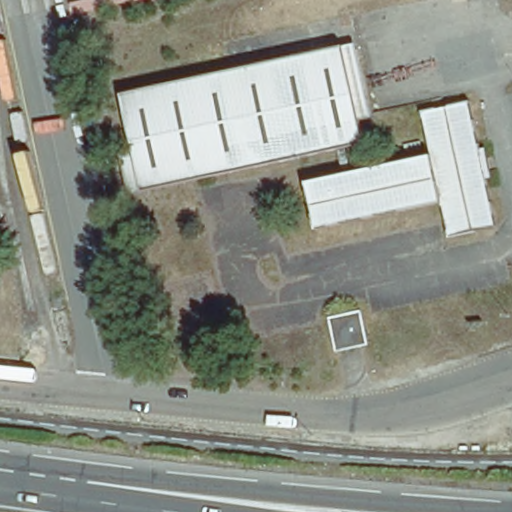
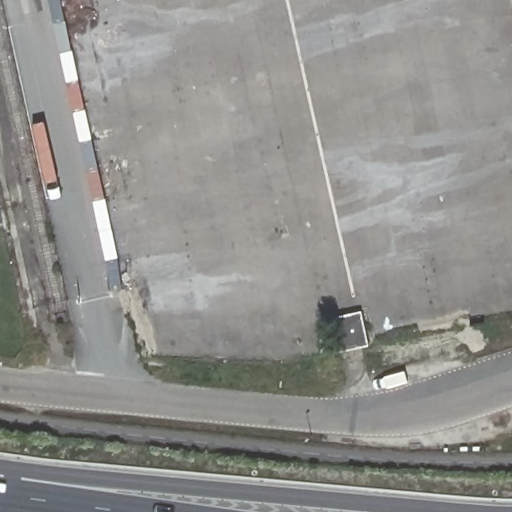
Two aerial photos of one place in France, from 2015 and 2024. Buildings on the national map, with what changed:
demolished [(139,156),(125,101),(342,52),(361,141),(146,188),(139,156)]
demolished [(401,166),(431,160),(422,120),(470,111),(496,234),(478,238),(401,166)]
demolished [(478,238),(450,244),(440,205),(318,231),(311,201),(309,188),(327,184),(401,166),(478,238)]
unchanged [(335,312),(366,305),(373,340),(342,346),(335,312)]

